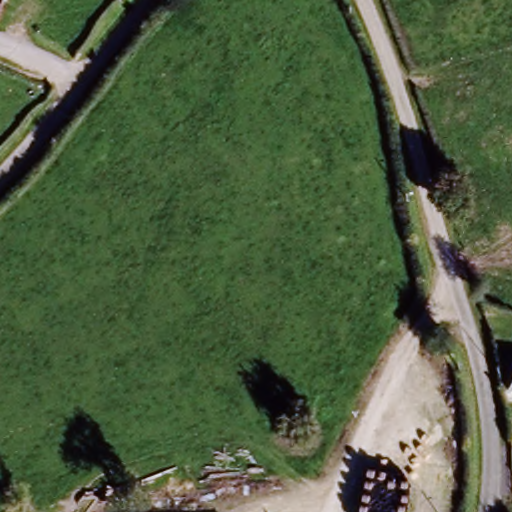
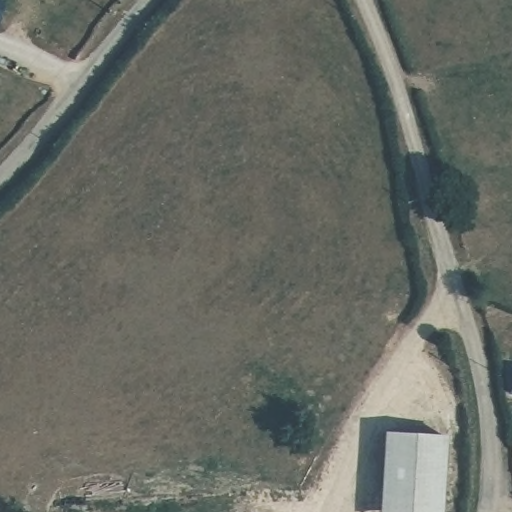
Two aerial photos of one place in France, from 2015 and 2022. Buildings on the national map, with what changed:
unchanged [(0,0),(2,0),(0,6),(0,0)]
new [(508,393),(512,370),(512,393),(508,393)]
new [(440,433),(430,512),(379,512),(390,427),(440,433)]

